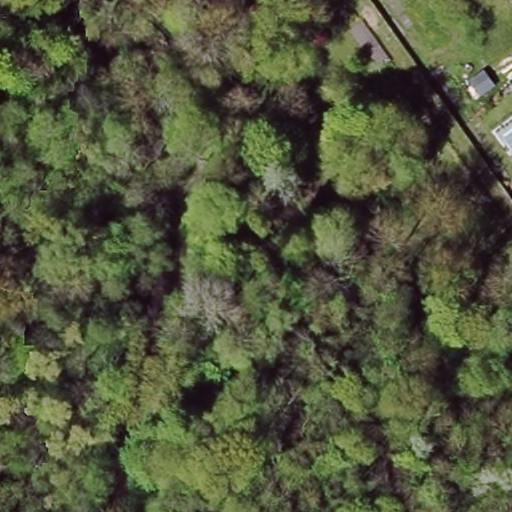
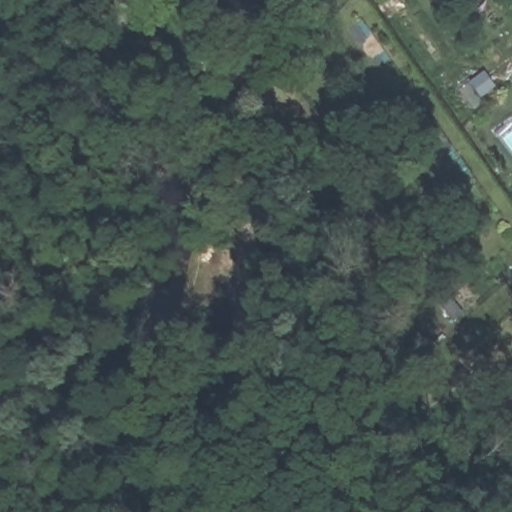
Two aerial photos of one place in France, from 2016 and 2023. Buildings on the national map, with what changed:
[]

